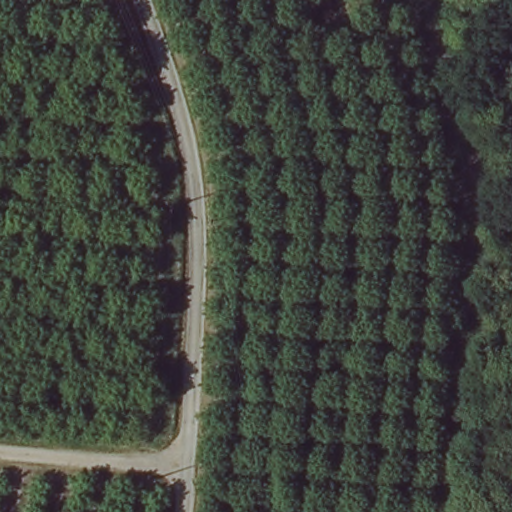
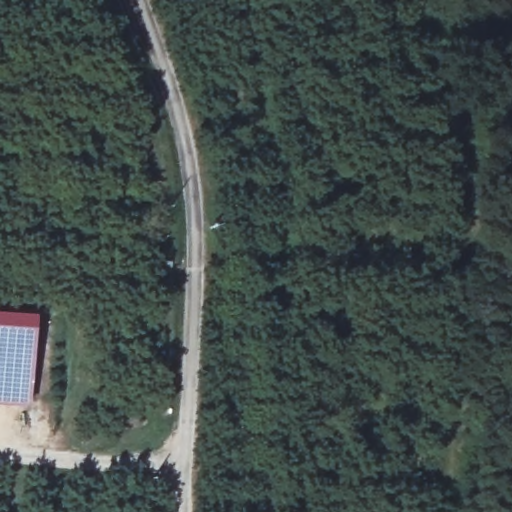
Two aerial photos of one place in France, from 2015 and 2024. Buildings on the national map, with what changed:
new [(0,404),(0,314),(35,316),(28,406),(0,404)]

